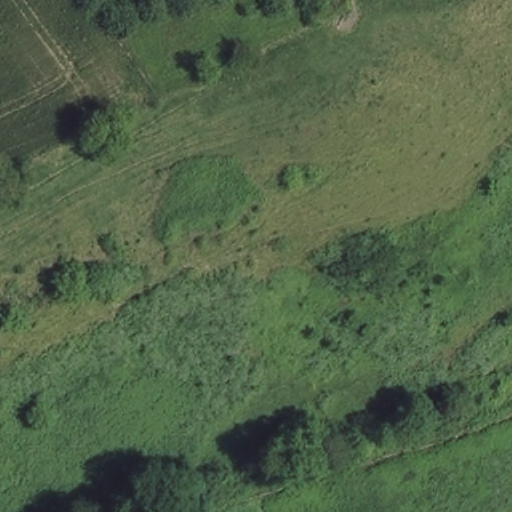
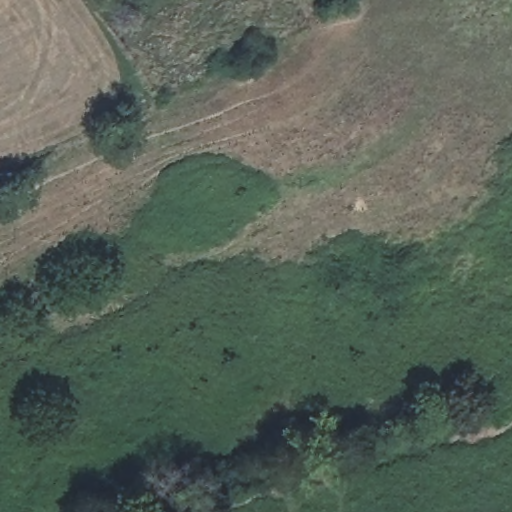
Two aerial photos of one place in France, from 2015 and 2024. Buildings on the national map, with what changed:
[]

